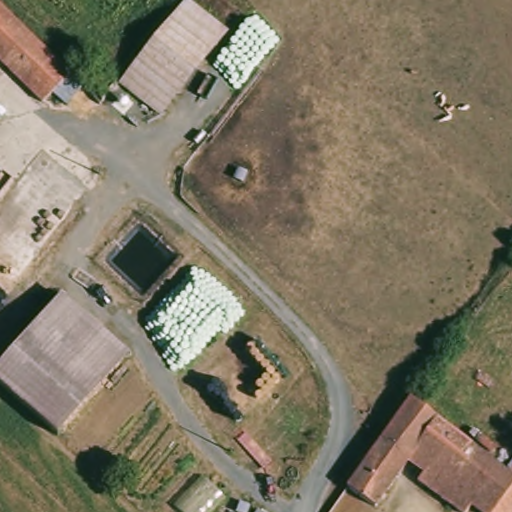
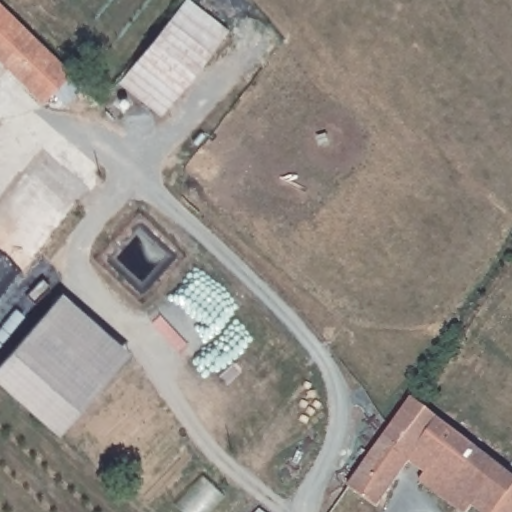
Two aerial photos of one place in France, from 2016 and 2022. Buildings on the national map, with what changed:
unchanged [(227,31),(185,86),(162,115),(126,85),(189,5),(192,2),(227,31)]
unchanged [(0,69),(0,12),(14,26),(42,52),(47,58),(48,59),(49,59),(55,66),(66,77),(37,106),(0,69)]
unchanged [(56,440),(0,388),(0,364),(60,294),(130,356),(56,440)]
unchanged [(457,438),(467,447),(491,465),(496,469),(482,491),(470,510),(468,512),(454,512),(417,483),(423,475),(407,463),(388,489),(375,508),(347,490),(373,453),(410,402),(456,437),(457,438)]
unchanged [(482,491),(496,469),(512,482),(512,485),(495,512),(473,512),(470,510),(482,491)]
unchanged [(495,512),(512,485),(512,512),(495,512)]

